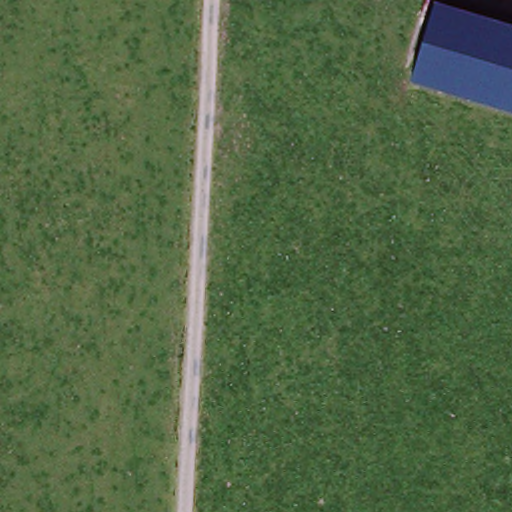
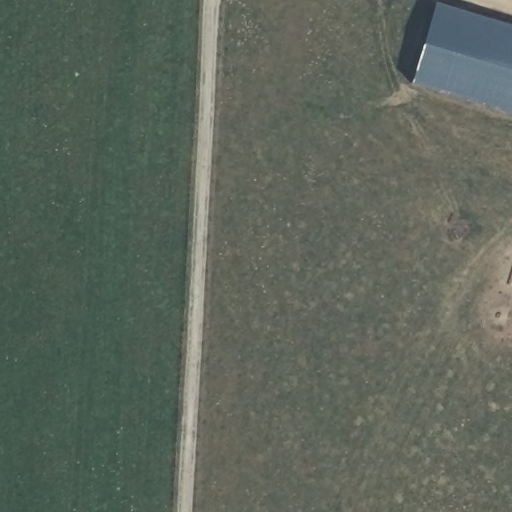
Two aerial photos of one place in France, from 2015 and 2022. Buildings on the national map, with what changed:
unchanged [(436,2),(512,24),(512,112),(412,82),(436,2)]

